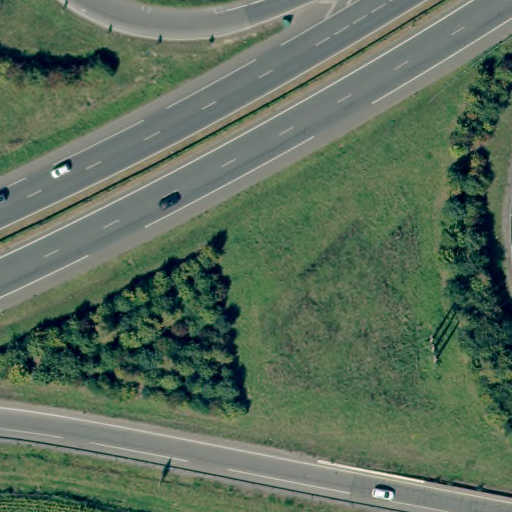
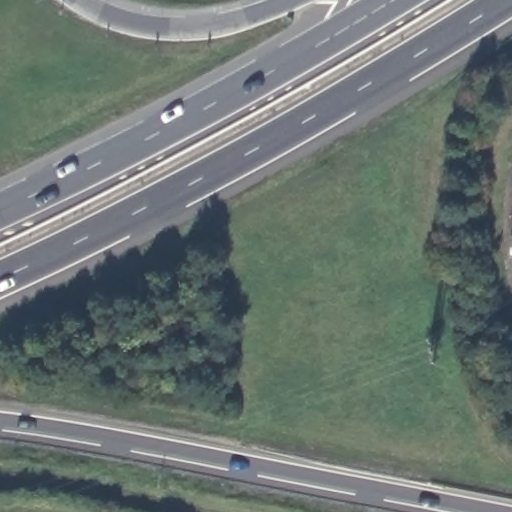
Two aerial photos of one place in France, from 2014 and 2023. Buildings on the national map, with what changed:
[]

